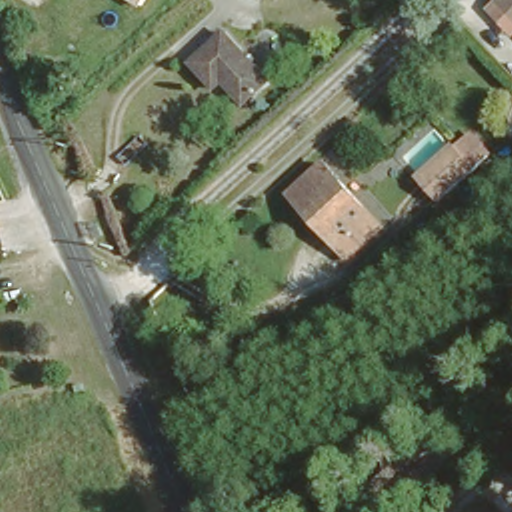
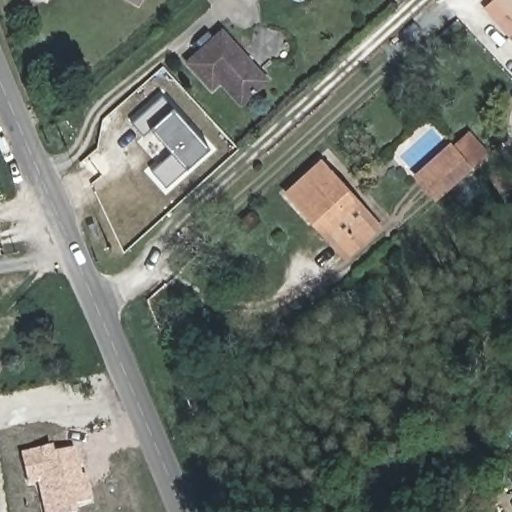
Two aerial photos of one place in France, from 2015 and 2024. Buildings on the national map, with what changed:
unchanged [(112,0),(139,0),(132,12),(112,0)]
unchanged [(492,0),(512,0),(512,29),(489,3),(492,0)]
unchanged [(225,34),(268,82),(245,104),(224,81),(216,87),(194,61),(225,34)]
new [(166,188),(151,172),(171,155),(149,130),(142,136),(131,124),(161,97),(209,150),(166,188)]
unchanged [(418,170),(451,140),(454,142),(469,128),(486,147),(479,155),(472,162),(470,161),(455,176),(437,192),(418,170)]
unchanged [(347,250),(310,209),(290,187),(325,156),(372,210),(381,219),(347,250)]
new [(52,447),(54,453),(75,450),(81,476),(86,475),(92,502),(75,505),(77,512),(44,512),(38,484),(28,486),(21,453),(52,447)]

